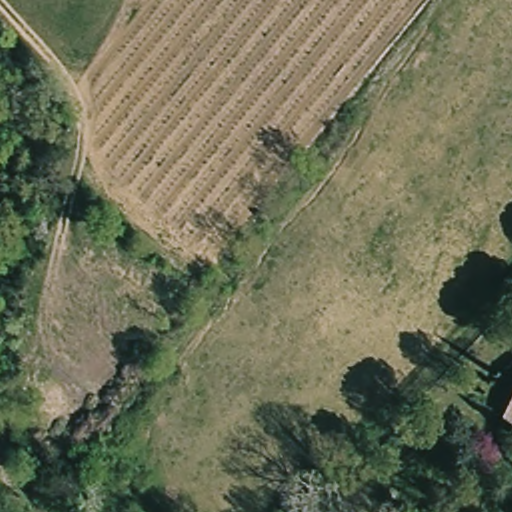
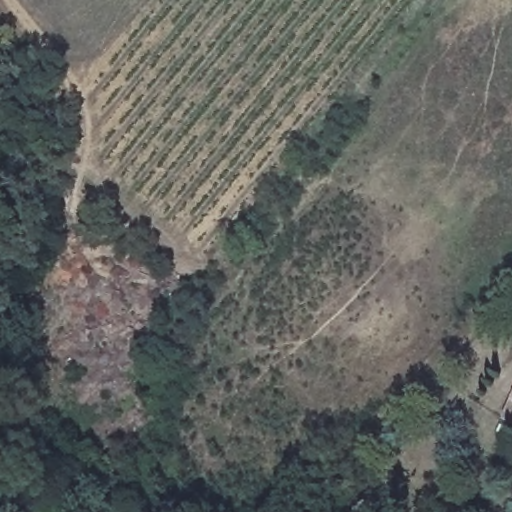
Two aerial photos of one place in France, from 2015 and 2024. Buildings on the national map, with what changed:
unchanged [(512,408),(512,418),(509,416),(512,408)]

